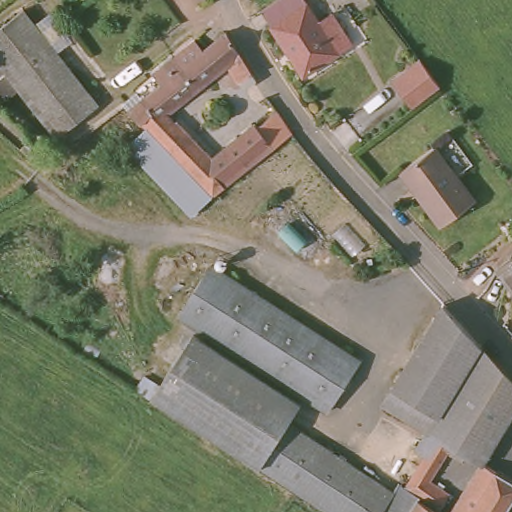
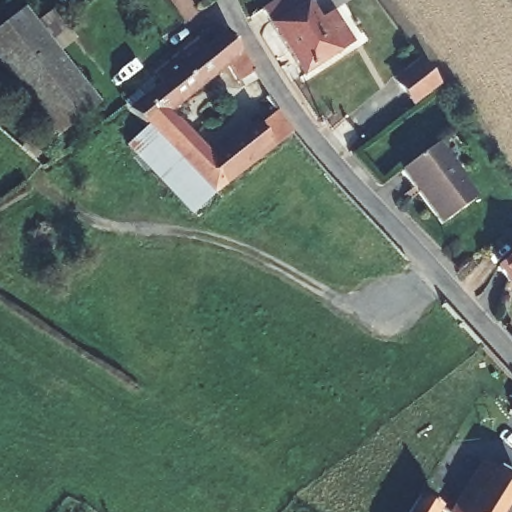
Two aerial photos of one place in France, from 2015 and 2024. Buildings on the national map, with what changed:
unchanged [(275,2),(279,0),(302,0),(316,22),(329,13),(350,45),(302,77),(257,13),(275,2)]
unchanged [(47,141),(0,74),(0,30),(25,11),(97,105),(47,141)]
unchanged [(287,137),(282,141),(270,151),(235,177),(228,183),(220,189),(207,200),(205,198),(174,166),(150,142),(142,132),(123,112),(137,100),(157,85),(150,73),(188,42),(198,54),(222,34),(233,54),(235,58),(246,76),(232,87),(222,70),(166,117),(205,159),(249,123),(253,127),(270,113),(287,135),(287,137)]
unchanged [(412,58),(385,80),(375,67),(366,56),(394,35),(397,38),(402,45),(410,56),(412,58)]
new [(418,61),(437,85),(410,107),(392,83),(418,61)]
unchanged [(189,213),(125,146),(142,132),(150,142),(174,166),(205,198),(189,213)]
unchanged [(432,152),(473,206),(443,230),(402,176),(432,152)]
unchanged [(512,290),(496,271),(512,258),(512,290)]
demolished [(327,410),(313,401),(305,396),(198,328),(179,316),(210,265),(352,354),(360,360),(327,410)]
demolished [(429,432),(381,401),(390,387),(439,301),(481,345),(512,378),(512,413),(483,461),(495,469),(469,512),(450,512),(479,464),(454,448),(428,488),(445,500),(438,510),(418,498),(420,494),(400,481),(429,432)]
demolished [(198,328),(305,396),(300,403),(192,336),(198,328)]
demolished [(151,400),(192,336),(300,403),(288,423),(258,468),(151,400)]
demolished [(288,423),(394,490),(381,512),(325,512),(294,492),(258,468),(288,423)]
unchanged [(512,479),(512,500),(505,512),(469,512),(495,469),(512,479)]
unchanged [(400,481),(420,494),(418,498),(410,512),(381,512),(394,490),(400,481)]
unchanged [(438,510),(438,512),(410,512),(418,498),(438,510)]

